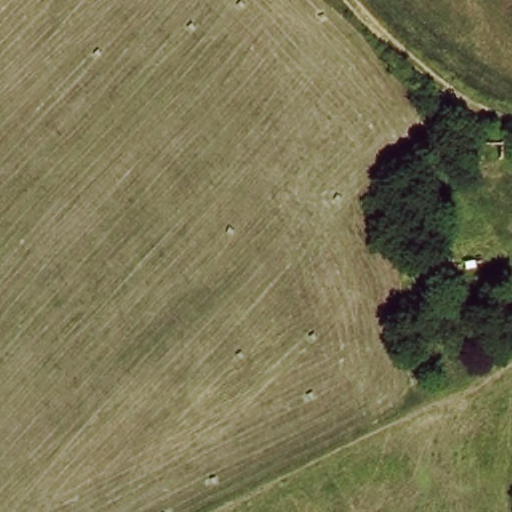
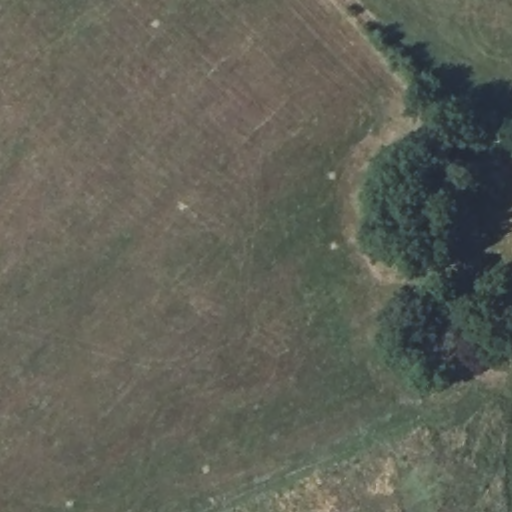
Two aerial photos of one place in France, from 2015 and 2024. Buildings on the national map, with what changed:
unchanged [(498,165),(448,166),(445,132),(498,130),(498,165)]

